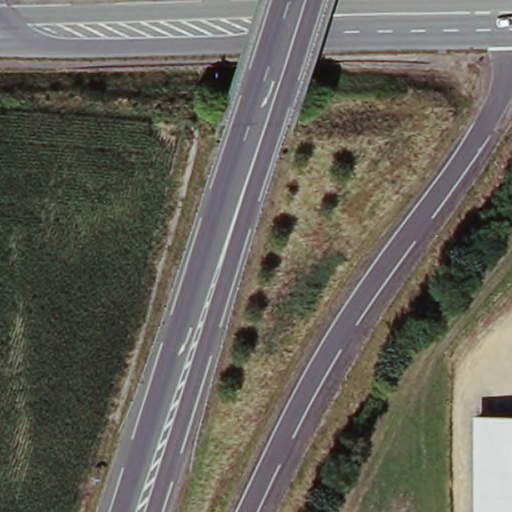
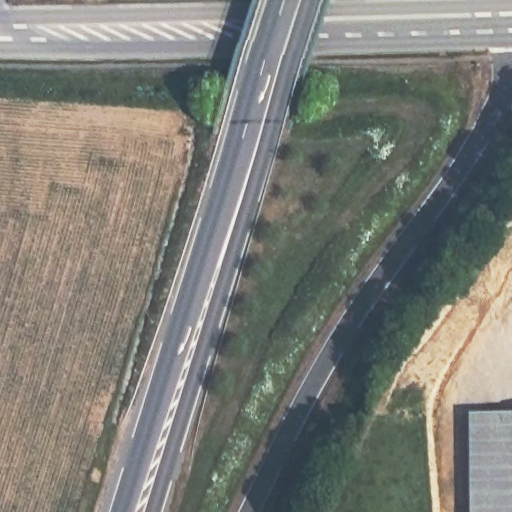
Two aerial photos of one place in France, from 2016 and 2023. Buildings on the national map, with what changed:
unchanged [(498,512),(496,414),(512,414),(512,512),(498,512)]

